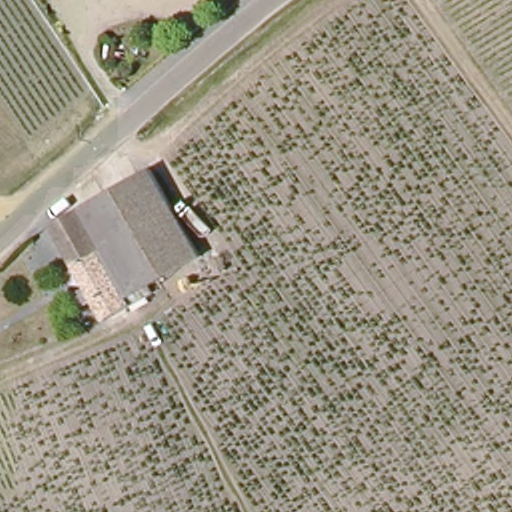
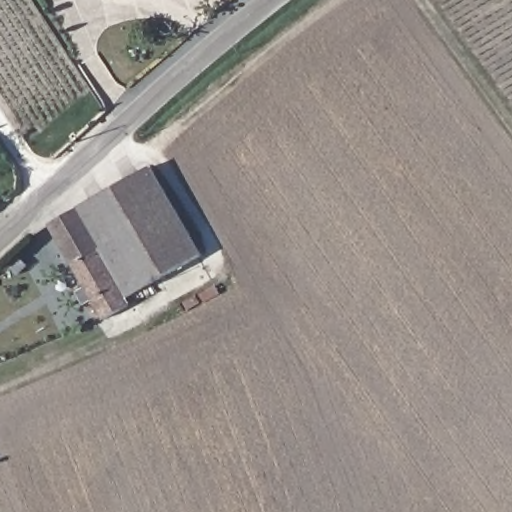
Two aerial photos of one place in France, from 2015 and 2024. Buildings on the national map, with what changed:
unchanged [(82,205),(150,169),(197,257),(129,293),(82,205)]
unchanged [(122,297),(127,307),(105,318),(53,221),(82,205),(129,293),(122,297)]

